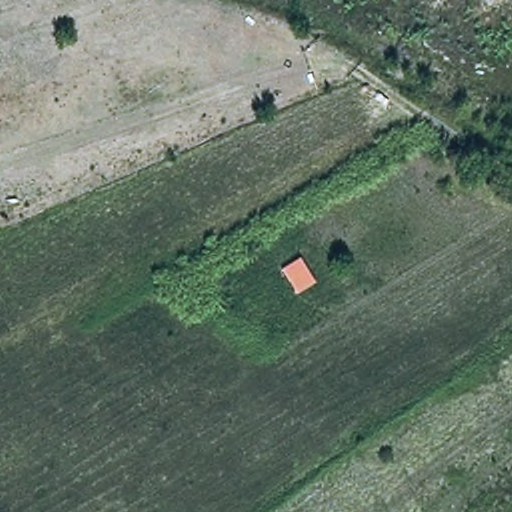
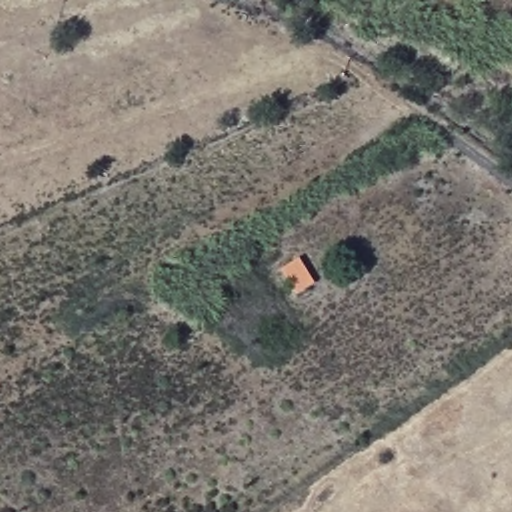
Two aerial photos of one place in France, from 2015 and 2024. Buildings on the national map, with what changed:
unchanged [(303,252),(318,280),(291,295),(277,267),(303,252)]

